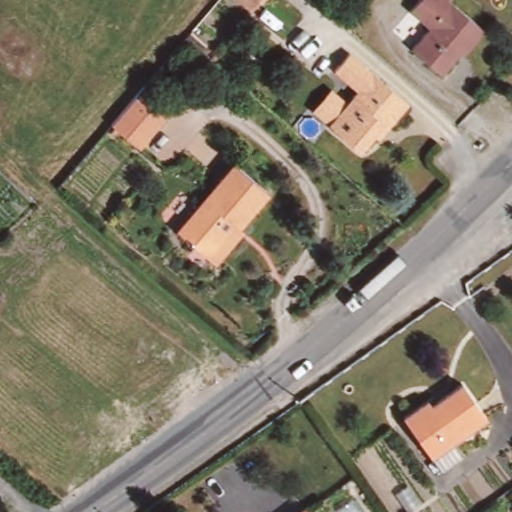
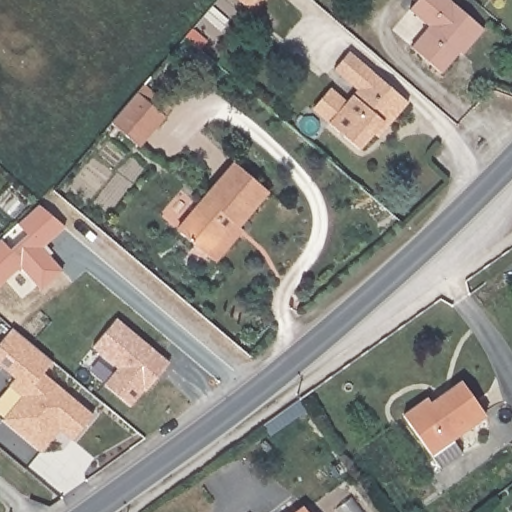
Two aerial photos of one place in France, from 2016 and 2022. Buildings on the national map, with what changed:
unchanged [(238,0),(260,0),(257,3),(250,11),(238,0)]
unchanged [(462,56),(459,52),(441,74),(411,48),(429,27),(409,10),(418,0),(449,0),(483,30),(462,56)]
unchanged [(191,30),(207,43),(201,51),(185,37),(191,30)]
unchanged [(330,91),(345,104),(357,90),(333,70),(349,52),(408,103),(387,127),(382,124),(359,151),(328,124),(329,122),(314,110),(330,91)]
unchanged [(111,124),(137,93),(141,88),(143,86),(171,110),(165,117),(139,148),(111,124)]
unchanged [(234,237),(214,262),(197,247),(177,231),(235,164),(268,192),(237,227),(241,230),(234,237)]
new [(65,227),(41,247),(63,270),(40,288),(21,268),(0,286),(0,240),(10,250),(27,234),(18,225),(39,205),(65,227)]
new [(143,391),(129,407),(103,385),(117,368),(92,347),(116,319),(168,363),(150,385),(144,392),(143,391)]
new [(40,452),(2,420),(22,397),(9,386),(15,378),(0,366),(0,343),(12,328),(17,332),(52,362),(43,373),(93,416),(71,441),(59,430),(53,437),(40,452)]
unchanged [(485,416),(451,441),(461,453),(439,469),(401,416),(420,403),(426,398),(430,403),(461,382),(485,416)]
unchanged [(297,512),(303,507),(307,512),(297,512)]

